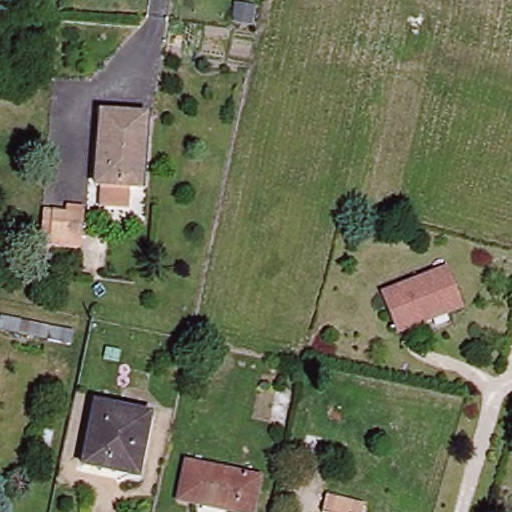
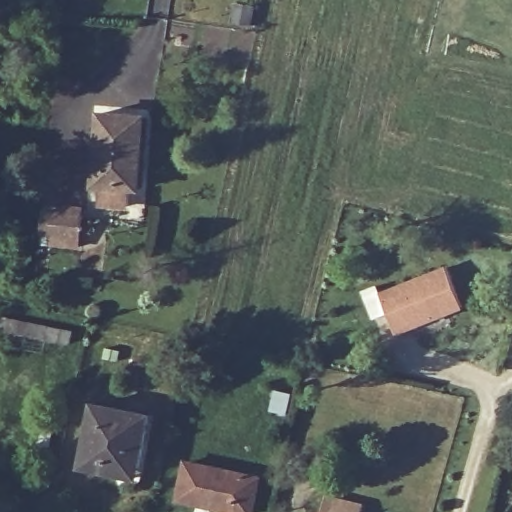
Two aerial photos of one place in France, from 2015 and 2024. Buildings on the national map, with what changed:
unchanged [(145,114),(141,185),(100,183),(103,112),(145,114)]
unchanged [(51,227),(53,208),(88,209),(87,229),(80,229),(80,238),(51,236),(51,227)]
unchanged [(399,334),(383,295),(448,269),(463,308),(414,328),(399,334)]
unchanged [(18,329),(0,326),(0,319),(2,309),(22,313),(18,329)]
unchanged [(64,337),(44,333),(46,319),(67,323),(64,337)]
unchanged [(84,461),(97,401),(149,412),(136,472),(84,461)]
unchanged [(187,460),(258,476),(251,512),(244,512),(180,498),(187,460)]
unchanged [(321,491),(361,497),(359,512),(319,512),(321,491)]

